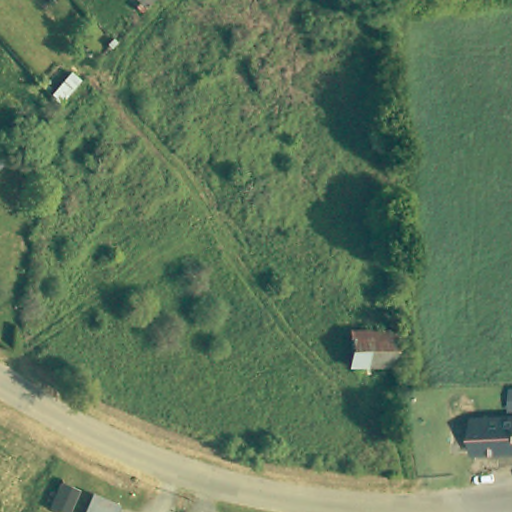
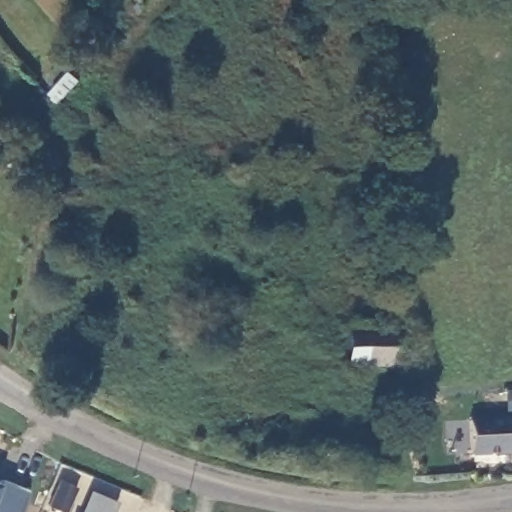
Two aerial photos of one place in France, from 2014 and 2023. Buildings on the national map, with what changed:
unchanged [(137,0),(158,0),(147,12),(137,0)]
unchanged [(49,89),(49,87),(69,67),(81,78),(60,100),(49,89)]
unchanged [(0,158),(0,147),(5,152),(0,158)]
unchanged [(397,331),(396,367),(351,367),(352,331),(397,331)]
unchanged [(512,419),(512,448),(478,453),(474,426),(512,419)]
new [(27,492),(20,512),(0,512),(0,483),(1,481),(27,492)]
unchanged [(114,493),(106,512),(73,512),(85,487),(88,481),(110,491),(114,493)]

